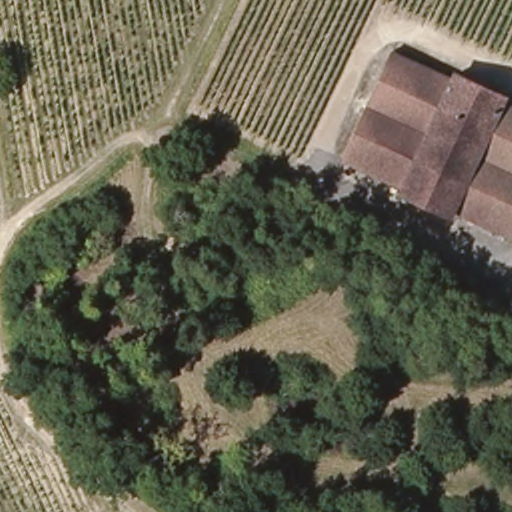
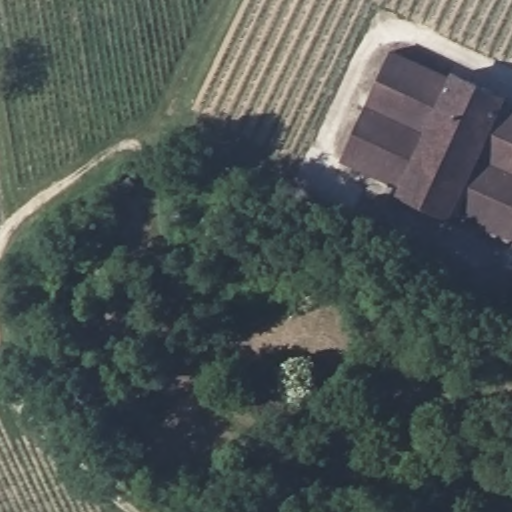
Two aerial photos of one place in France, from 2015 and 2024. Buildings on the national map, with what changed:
unchanged [(512,108),(512,237),(511,239),(456,216),(453,221),(398,196),(400,189),(342,164),(393,55),(448,80),(451,75),(510,102),(508,107),(512,108)]
unchanged [(512,319),(512,325),(510,323),(512,319)]

